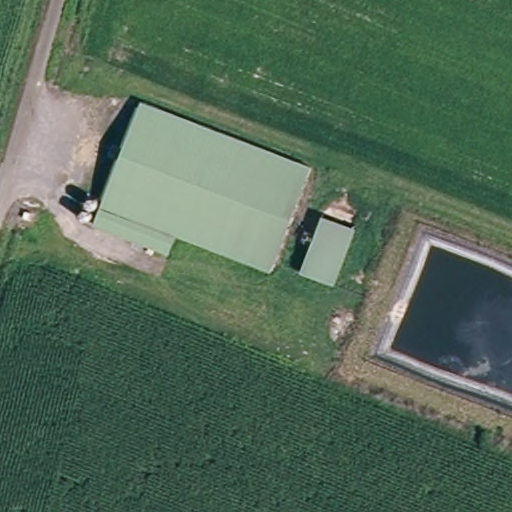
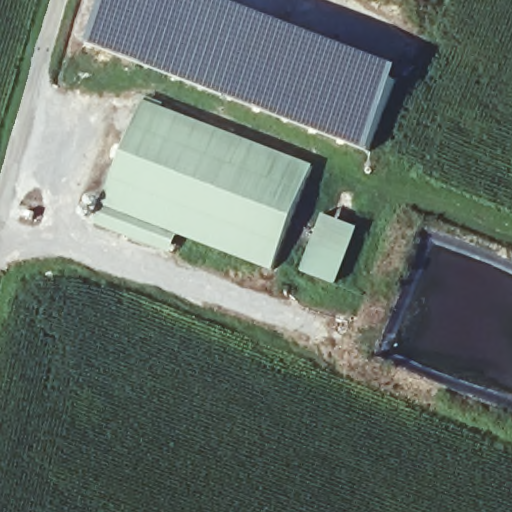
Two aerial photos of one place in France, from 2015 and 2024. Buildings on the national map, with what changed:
new [(222,0),(403,69),(372,153),(89,43),(106,0),(222,0)]
unchanged [(152,244),(95,221),(143,99),(312,166),(272,268),(179,230),(171,251),(152,244)]
unchanged [(358,229),(337,285),(301,272),(321,214),(358,229)]

